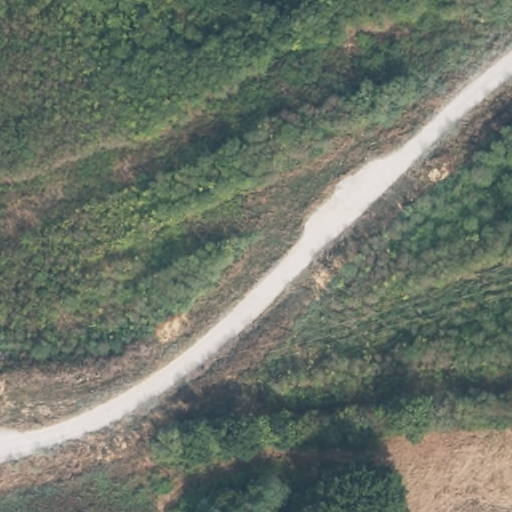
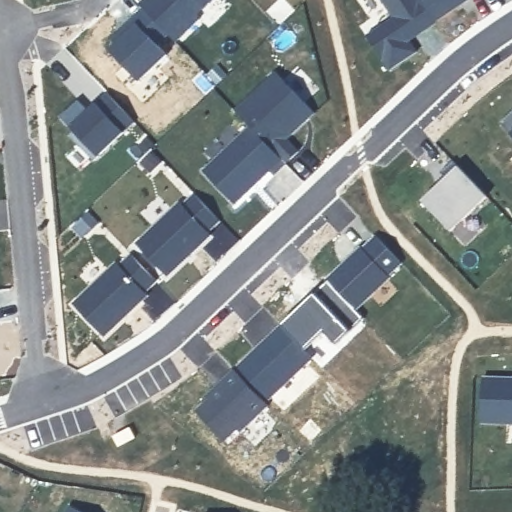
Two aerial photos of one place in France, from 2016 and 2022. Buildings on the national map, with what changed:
new [(214,0),(198,17),(199,18),(174,42),(169,36),(144,8),(139,3),(142,0),(214,0)]
new [(418,51),(390,71),(367,36),(394,17),(383,0),(421,0),(436,21),(410,38),(418,51)]
new [(421,0),(467,0),(436,21),(421,0)]
new [(159,44),(169,55),(140,81),(109,51),(116,44),(111,39),(144,8),(169,36),(159,44)]
new [(275,72),(314,114),(287,140),(299,152),(285,164),(250,127),(235,111),(275,72)]
new [(100,157),(71,130),(61,117),(79,100),(90,110),(94,106),(108,92),(134,121),(123,135),(100,157)]
new [(512,113),(512,135),(501,124),(512,113)]
new [(250,127),(285,164),(274,176),(269,171),(234,205),(203,171),(250,127)]
new [(447,179),(441,173),(454,162),(488,197),(452,232),(423,202),(447,179)]
new [(180,204),(183,207),(195,196),(219,221),(208,232),(210,235),(167,276),(137,245),(180,204)]
new [(377,238),(402,263),(388,277),(390,278),(356,310),(328,281),(377,238)]
new [(117,264),(120,267),(131,256),(156,281),(144,292),(147,296),(104,337),(74,305),(117,264)]
new [(280,324),(313,358),(269,399),(237,365),(280,324)]
new [(195,411),(208,400),(206,396),(234,371),(268,406),(226,442),(195,411)]
new [(482,375),(512,375),(512,424),(482,423),(482,375)]
new [(69,507),(77,512),(66,512),(69,507)]

